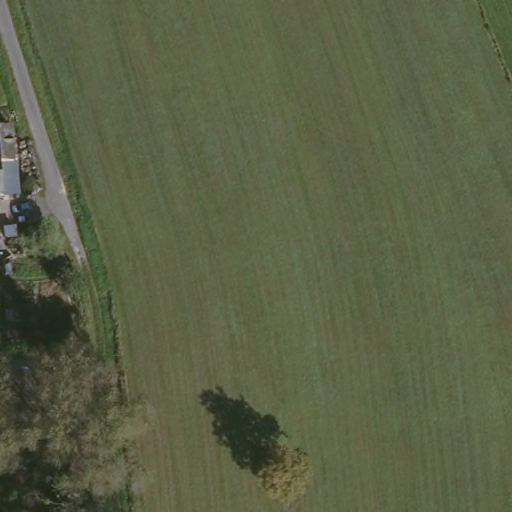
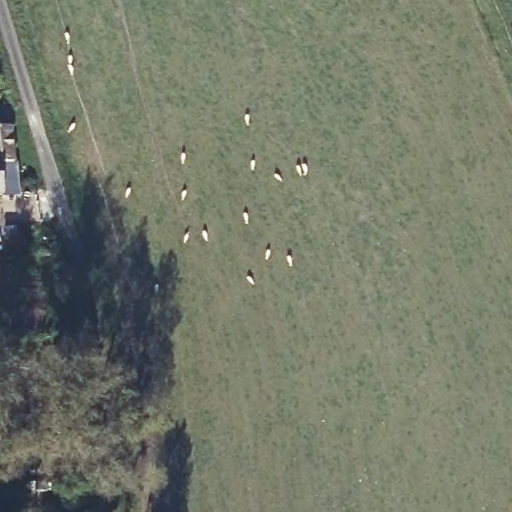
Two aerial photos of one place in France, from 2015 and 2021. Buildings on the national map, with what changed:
unchanged [(0,132),(14,191),(0,195),(0,132)]

